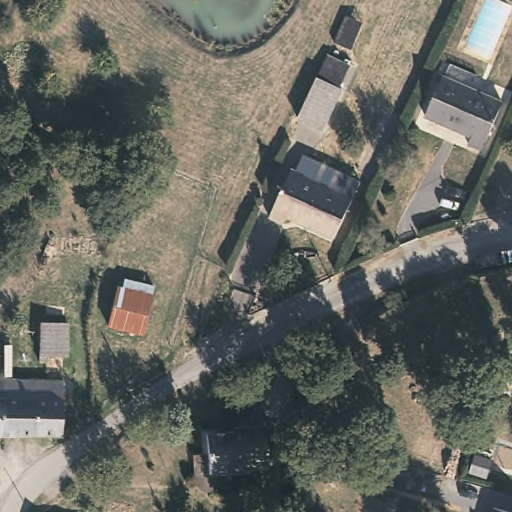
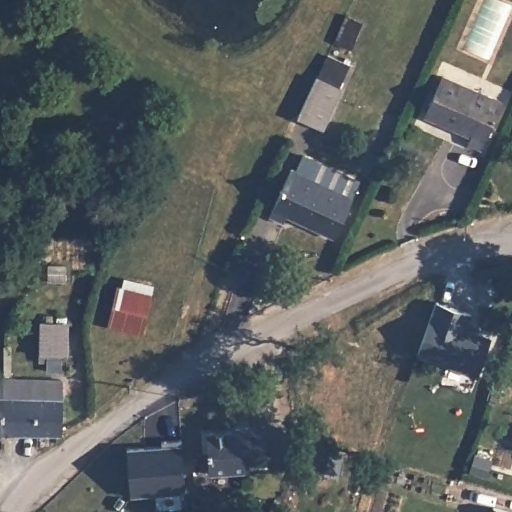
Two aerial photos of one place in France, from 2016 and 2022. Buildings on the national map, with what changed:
unchanged [(323,122),(298,111),(317,70),(327,49),(349,61),(339,79),(343,81),(323,122)]
unchanged [(503,99),(482,148),(469,142),(471,132),(426,113),(444,74),(503,99)]
unchanged [(361,182),(353,198),(291,170),(299,153),(361,182)]
unchanged [(353,198),(336,236),(289,215),(284,223),(270,217),(291,170),(353,198)]
unchanged [(151,290),(143,330),(109,324),(117,283),(151,290)]
new [(416,355),(434,301),(472,313),(466,329),(490,337),(477,376),(416,355)]
unchanged [(69,313),(68,344),(49,343),(49,352),(39,351),(40,313),(69,313)]
unchanged [(3,375),(2,429),(0,430),(0,376),(3,375)]
unchanged [(65,375),(63,429),(2,429),(3,375),(65,375)]
unchanged [(265,466),(247,466),(247,472),(206,473),(205,433),(245,432),(245,429),(264,428),(265,466)]
new [(130,496),(127,448),(182,445),(185,492),(130,496)]
unchanged [(512,512),(489,512),(491,505),(512,510),(512,512)]

